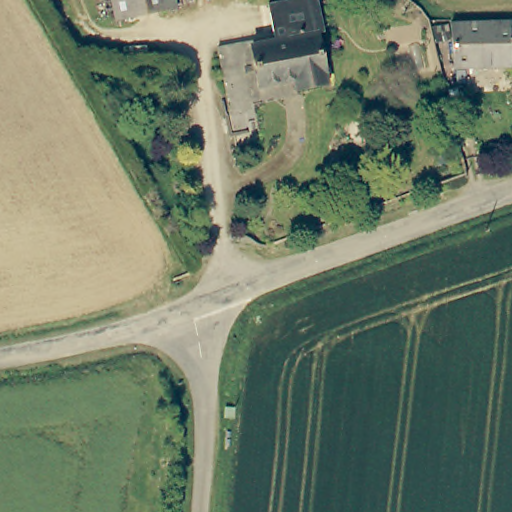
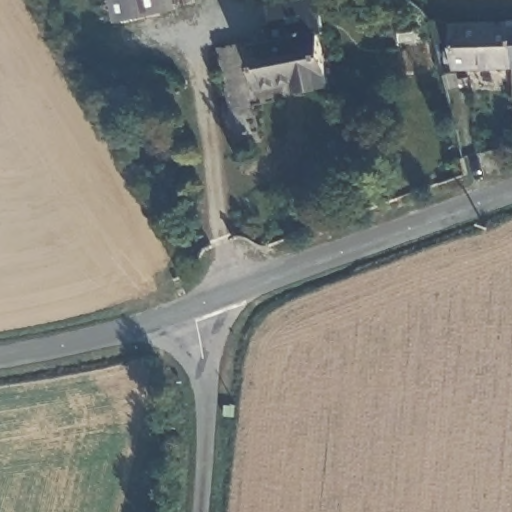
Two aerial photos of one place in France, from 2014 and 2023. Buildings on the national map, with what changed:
unchanged [(176,5),(177,9),(118,21),(114,0),(194,0),(194,1),(176,5)]
unchanged [(319,37),(329,87),(297,95),(295,86),(263,93),(265,106),(252,108),(260,147),(238,151),(237,142),(232,143),(224,104),(229,102),(219,51),(277,39),(270,8),(307,0),(319,0),(327,35),(319,37)]
unchanged [(464,70),(463,24),(512,22),(512,67),(464,70)]

